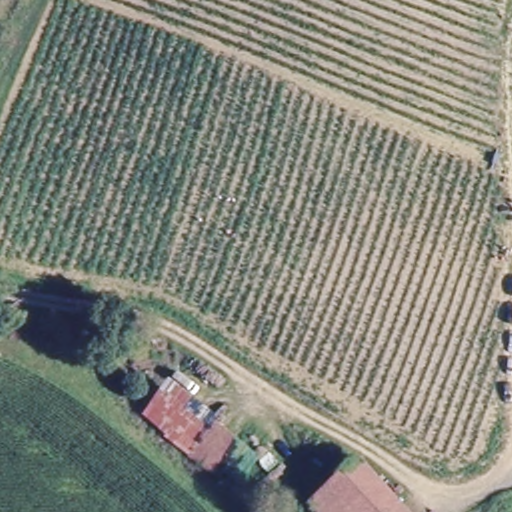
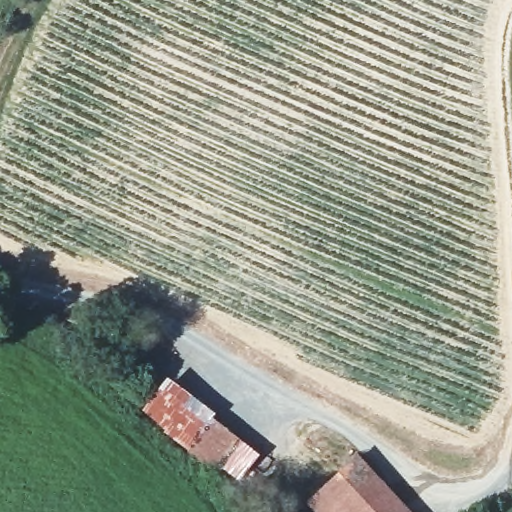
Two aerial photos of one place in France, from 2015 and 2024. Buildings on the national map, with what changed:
unchanged [(151,435),(183,398),(227,431),(200,467),(151,435)]
unchanged [(406,512),(313,512),(302,500),(355,450),(406,512)]

